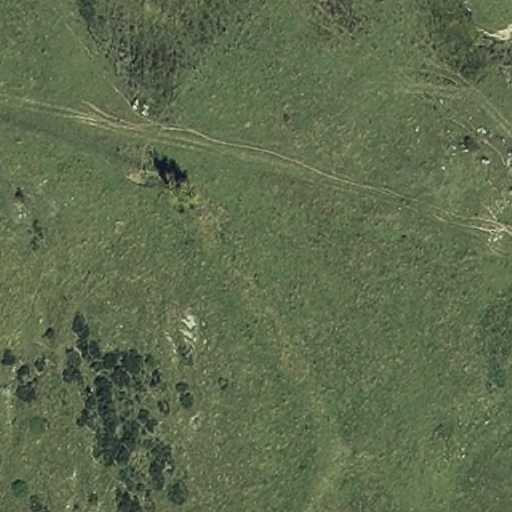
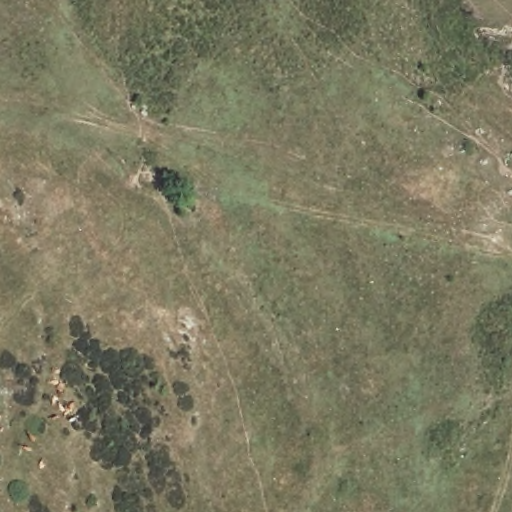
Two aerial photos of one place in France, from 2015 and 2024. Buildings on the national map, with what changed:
[]

